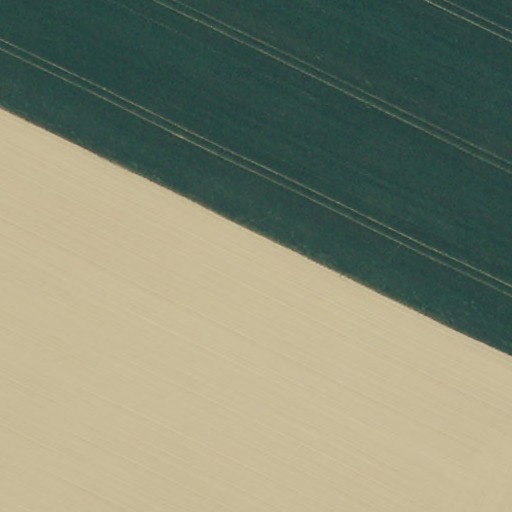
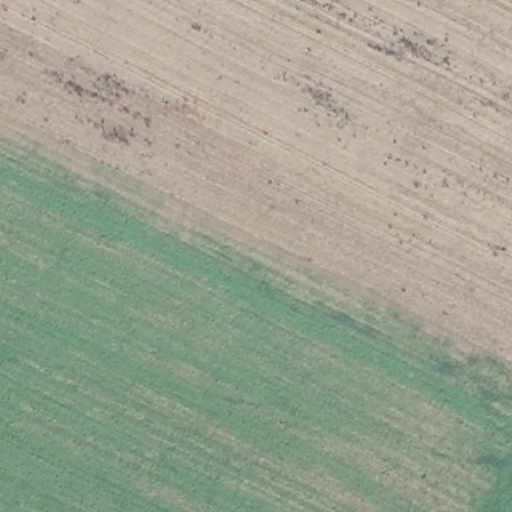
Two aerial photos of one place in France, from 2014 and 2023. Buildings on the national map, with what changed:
[]

